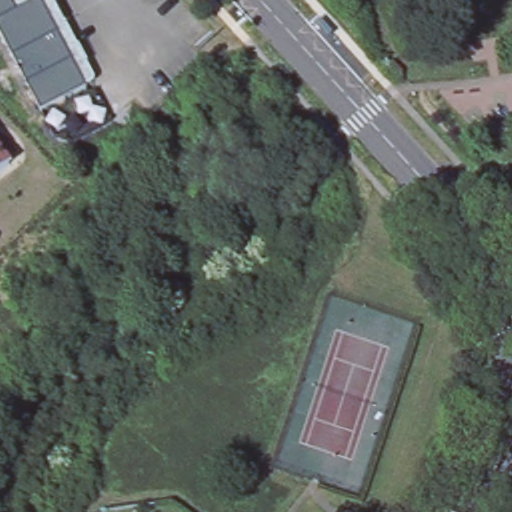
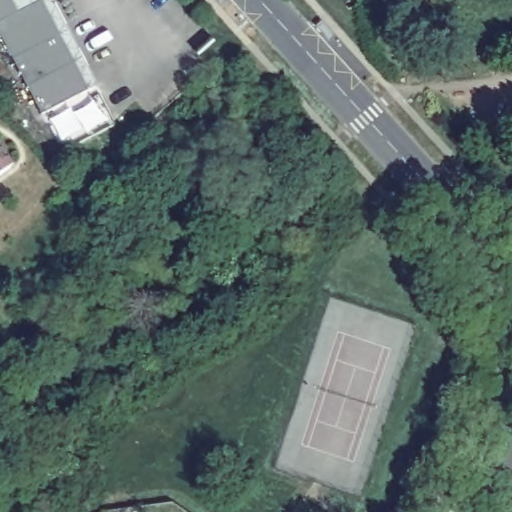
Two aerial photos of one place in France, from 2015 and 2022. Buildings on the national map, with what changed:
unchanged [(20,9),(0,19),(0,0),(15,0),(20,9)]
unchanged [(0,19),(20,9),(38,0),(44,0),(60,31),(14,54),(0,28),(0,19)]
unchanged [(14,54),(60,31),(75,59),(29,83),(14,54)]
unchanged [(29,83),(75,59),(90,86),(45,112),(29,83)]
unchanged [(0,155),(10,169),(0,178),(0,155)]

